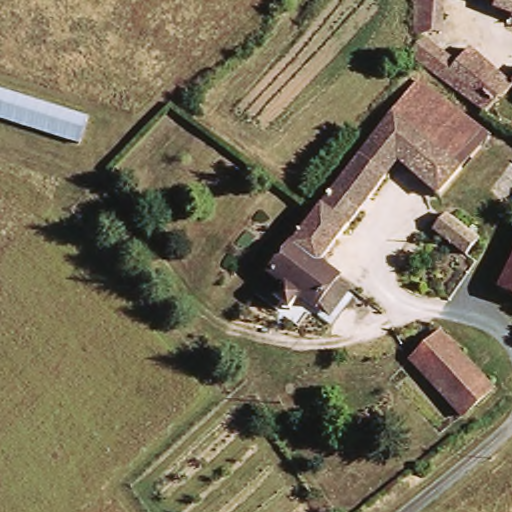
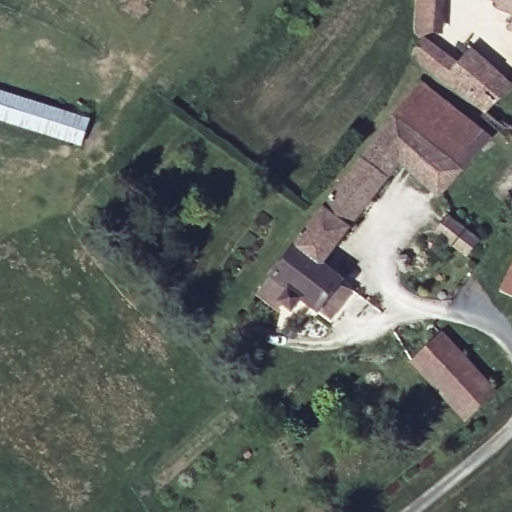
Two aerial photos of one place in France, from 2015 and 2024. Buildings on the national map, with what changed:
unchanged [(415,34),(418,0),(448,0),(442,31),(425,39),(420,41),(415,34)]
unchanged [(510,13),(499,11),(500,4),(487,0),(512,0),(512,24),(510,23),(510,13)]
unchanged [(472,49),(512,85),(512,90),(490,112),(428,69),(423,65),(409,56),(420,41),(425,39),(458,66),(472,49)]
unchanged [(417,80),(490,134),(442,194),(402,161),(323,260),(343,276),(320,306),(308,298),(272,272),(395,112),(417,80)]
unchanged [(0,121),(0,91),(90,118),(80,146),(0,121)]
unchanged [(477,246),(467,259),(435,234),(445,219),(477,246)]
unchanged [(272,272),(308,298),(296,314),(285,305),(278,313),(255,294),(272,272)]
unchanged [(512,294),(505,291),(512,276),(512,294)]
unchanged [(415,358),(442,334),(492,391),(466,417),(415,358)]

